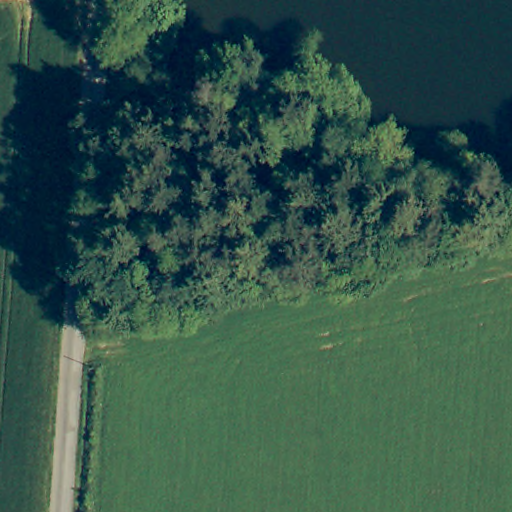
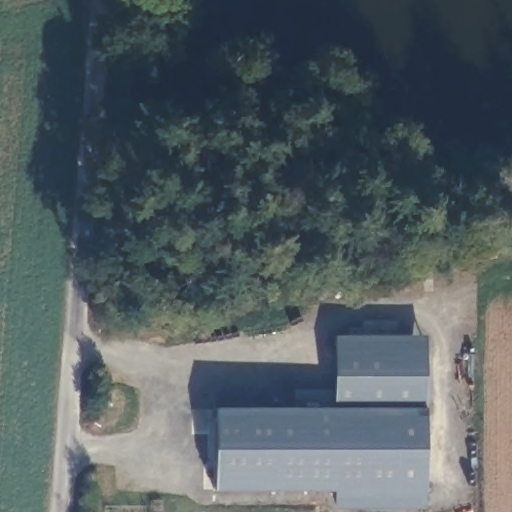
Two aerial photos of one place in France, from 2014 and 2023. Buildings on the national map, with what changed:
new [(425,510),(333,508),(333,491),(214,491),(215,407),(331,405),(331,333),(423,333),(425,510)]

